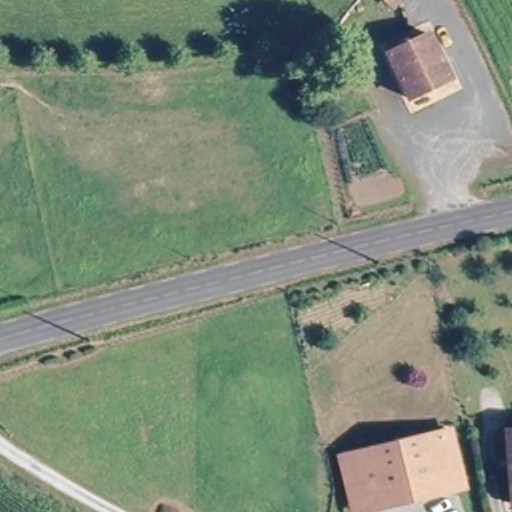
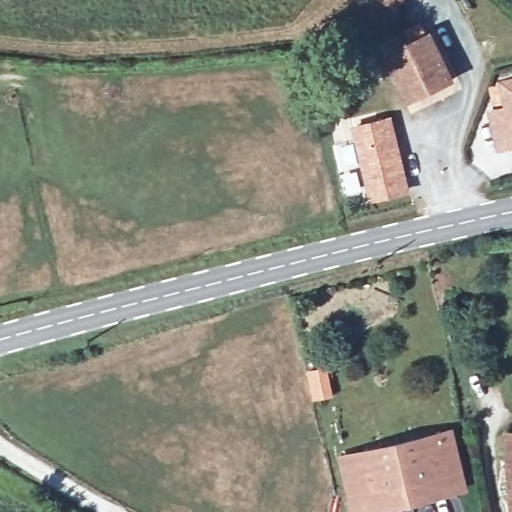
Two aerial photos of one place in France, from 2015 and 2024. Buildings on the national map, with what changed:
unchanged [(397,10),(384,0),(404,0),(397,10)]
unchanged [(429,93),(411,102),(403,85),(390,55),(396,52),(422,40),(431,35),(446,67),(452,82),(429,93)]
new [(487,108),(504,103),(499,77),(512,75),(512,147),(497,150),(487,108)]
new [(351,125),(393,115),(412,192),(370,202),(351,125)]
unchanged [(344,467),(342,457),(451,431),(452,441),(463,486),(453,488),(364,510),(355,512),(344,467)]
unchanged [(502,436),(512,435),(512,509),(510,509),(508,496),(502,436)]

